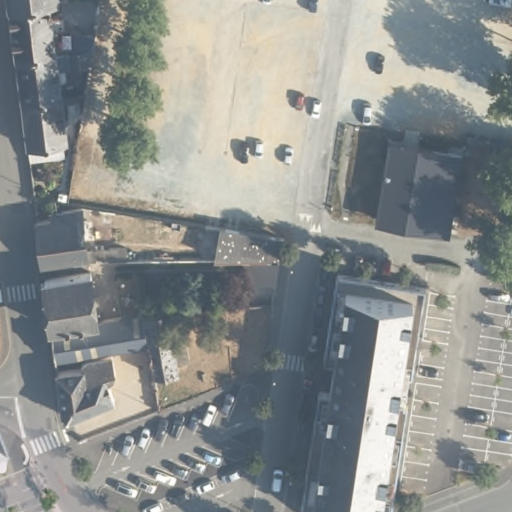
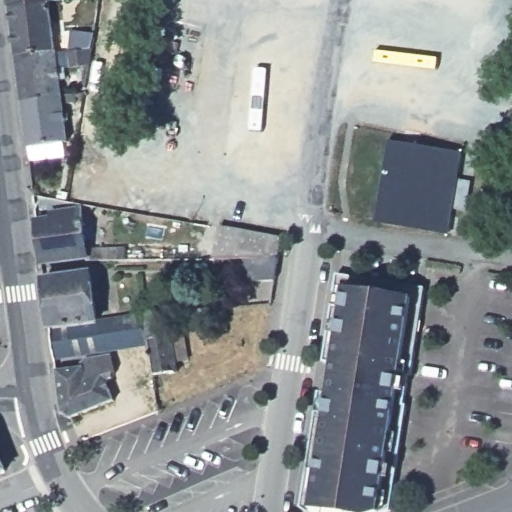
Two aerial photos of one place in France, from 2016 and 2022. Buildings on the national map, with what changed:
unchanged [(8,0),(59,0),(59,1),(49,2),(9,7),(8,0)]
unchanged [(9,7),(49,2),(56,54),(16,59),(9,7)]
unchanged [(60,91),(72,89),(74,96),(21,103),(16,59),(56,54),(56,56),(70,54),(71,32),(96,35),(94,51),(91,67),(58,70),(60,91)]
unchanged [(21,103),(74,96),(76,96),(76,104),(62,106),(67,142),(62,143),(64,155),(29,160),(27,149),(21,103)]
unchanged [(420,227),(390,222),(375,220),(381,190),(385,160),(415,166),(418,150),(446,156),(461,157),(456,187),(452,217),(450,232),(420,227)]
unchanged [(36,210),(57,207),(56,202),(80,199),(87,239),(125,239),(126,251),(90,251),(88,248),(42,255),(36,210)]
unchanged [(246,260),(215,260),(217,246),(209,245),(210,237),(218,237),(220,228),(282,238),(279,260),(275,283),(245,282),(246,260)]
unchanged [(98,318),(51,325),(44,275),(90,267),(97,317),(98,318)]
unchanged [(298,512),(291,507),(308,392),(319,393),(324,365),(313,363),(316,346),(327,274),(415,288),(401,376),(398,375),(393,405),(396,405),(381,509),(373,512),(298,512)]
unchanged [(228,328),(222,328),(221,322),(214,322),(212,304),(225,303),(228,328)]
unchanged [(189,355),(176,357),(177,367),(155,372),(155,369),(150,342),(145,311),(182,307),(205,305),(207,318),(184,321),(184,317),(170,320),(174,340),(187,338),(189,355)]
unchanged [(51,325),(98,318),(97,317),(145,311),(150,342),(55,355),(51,325)]
unchanged [(57,367),(83,365),(82,360),(89,356),(111,352),(115,368),(113,376),(106,378),(112,392),(115,397),(71,413),(62,410),(57,367)]
unchanged [(6,472),(0,474),(0,457),(6,472)]

